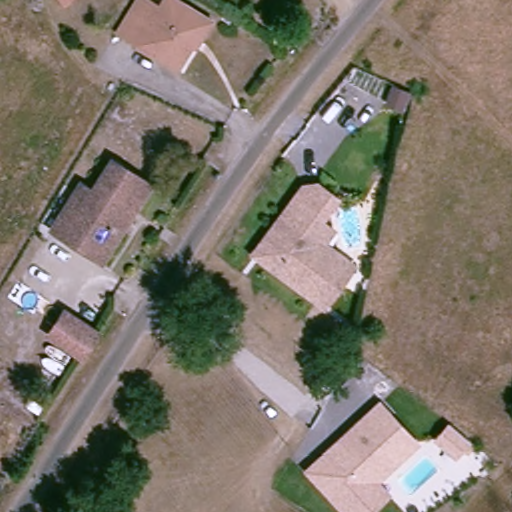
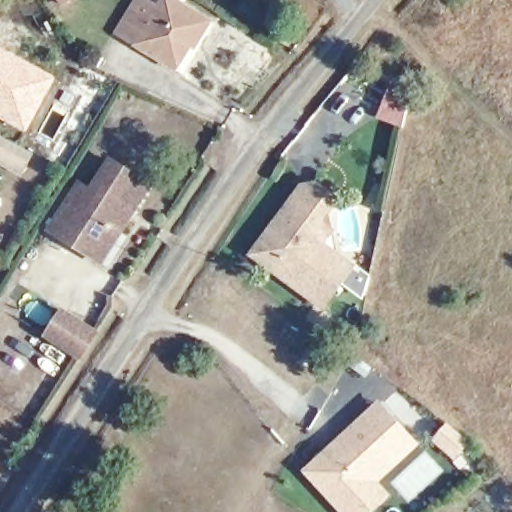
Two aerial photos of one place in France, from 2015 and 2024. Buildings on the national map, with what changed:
unchanged [(72,0),(63,6),(59,0),(72,0)]
unchanged [(158,0),(180,14),(188,1),(216,18),(200,44),(196,42),(182,66),(120,30),(138,0),(158,0)]
new [(25,95),(40,104),(28,126),(0,111),(0,47),(39,68),(25,95)]
unchanged [(24,171),(0,158),(0,134),(34,152),(24,171)]
unchanged [(65,231),(95,186),(105,193),(125,161),(159,183),(140,213),(146,216),(135,233),(129,229),(120,230),(112,241),(90,226),(81,241),(65,231)]
unchanged [(258,234),(267,222),(275,212),(297,182),(312,182),(330,195),(314,217),(328,228),(318,241),(347,263),(347,264),(346,265),(341,272),(317,304),(261,261),(246,250),(258,234)]
unchanged [(75,354),(42,332),(58,307),(92,329),(75,354)]
unchanged [(380,507),(374,512),(341,512),(318,485),(315,480),(308,473),(320,464),(376,416),(384,409),(388,414),(416,448),(420,451),(377,487),(388,501),(380,507)]
unchanged [(462,457),(442,442),(454,426),(468,436),(474,441),(462,457)]

